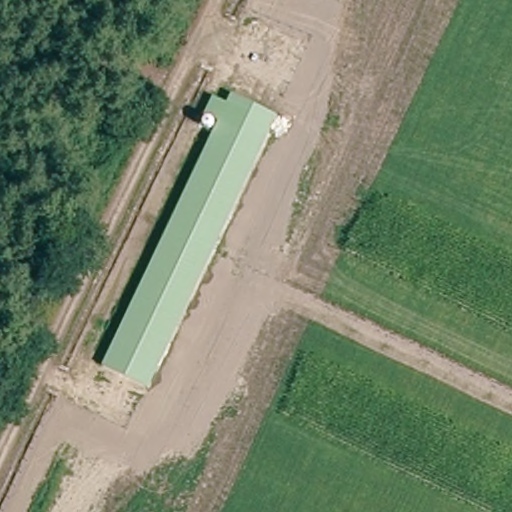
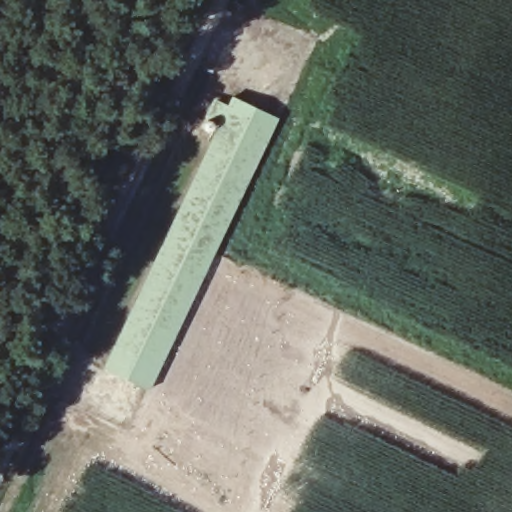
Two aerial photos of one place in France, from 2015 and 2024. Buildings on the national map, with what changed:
unchanged [(217,123),(203,115),(212,98),(226,104),(232,94),(278,116),(148,389),(101,366),(217,123)]

